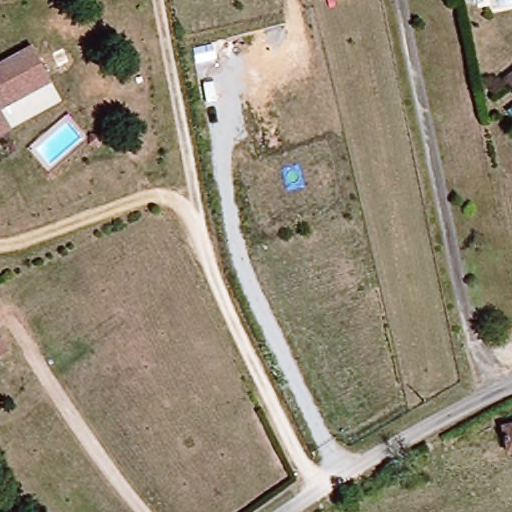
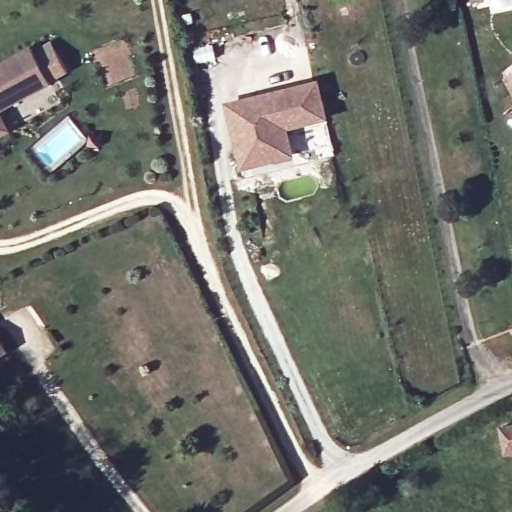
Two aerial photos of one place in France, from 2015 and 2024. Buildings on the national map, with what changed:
unchanged [(34,45),(55,84),(1,113),(12,133),(0,139),(0,64),(34,45)]
unchanged [(512,65),(512,82),(504,71),(512,65)]
new [(276,157),(241,166),(226,103),(316,82),(325,117),(284,127),(290,154),(276,157)]
unchanged [(8,348),(1,353),(0,354),(0,335),(8,348)]
unchanged [(502,431),(512,428),(512,455),(511,455),(502,431)]

